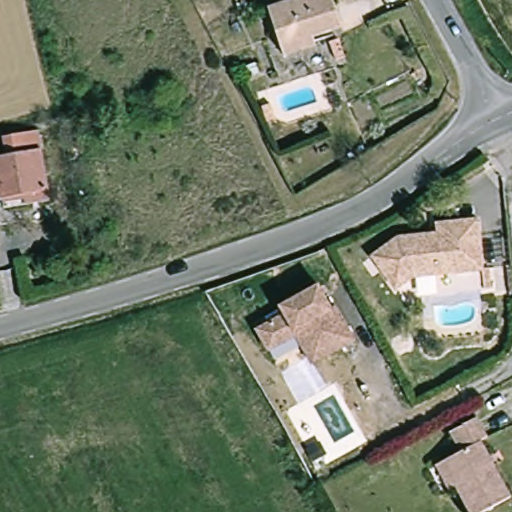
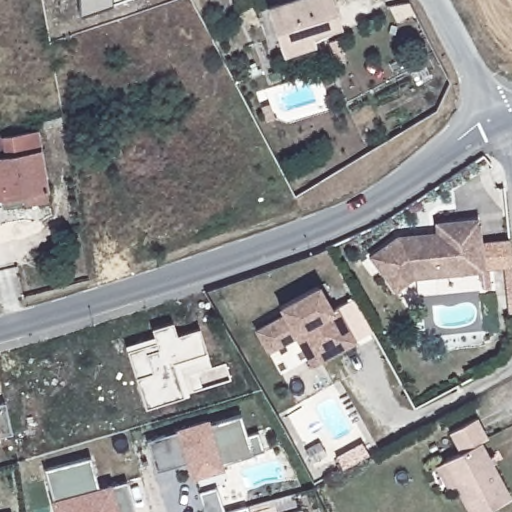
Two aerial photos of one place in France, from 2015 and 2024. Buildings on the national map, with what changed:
new [(110,0),(110,5),(78,15),(77,0),(110,0)]
unchanged [(332,0),(341,27),(311,36),(314,45),(282,55),(267,8),(292,0),(332,0)]
unchanged [(1,131),(36,126),(46,185),(0,193),(0,152),(4,151),(1,131)]
unchanged [(482,270),(411,277),(394,290),(370,256),(397,237),(437,233),(436,224),(477,219),(482,270)]
new [(509,242),(512,267),(482,270),(479,245),(509,242)]
new [(512,267),(512,296),(507,297),(504,268),(512,267)]
unchanged [(326,315),(330,312),(348,345),(314,365),(298,336),(263,355),(251,335),(279,320),(274,312),(312,291),(326,315)]
new [(181,366),(191,396),(186,397),(146,410),(128,352),(126,347),(156,338),(153,330),(172,323),(176,336),(198,328),(206,353),(208,357),(181,366)]
new [(11,431),(0,434),(0,404),(4,402),(11,431)]
new [(156,472),(146,442),(176,432),(175,428),(209,418),(211,425),(240,415),(246,435),(258,432),(263,448),(250,453),(221,463),(223,468),(191,479),(185,461),(156,472)]
unchanged [(440,470),(447,466),(464,457),(454,437),(481,422),(491,442),(484,446),(512,499),(512,504),(496,512),(472,512),(460,490),(454,495),(440,470)]
new [(338,453),(364,440),(371,452),(345,467),(338,453)]
new [(53,510),(43,469),(90,456),(98,488),(126,481),(135,512),(54,512),(53,510)]
new [(249,512),(223,512),(246,505),(249,512)]
new [(301,508),(302,512),(288,512),(301,508)]

